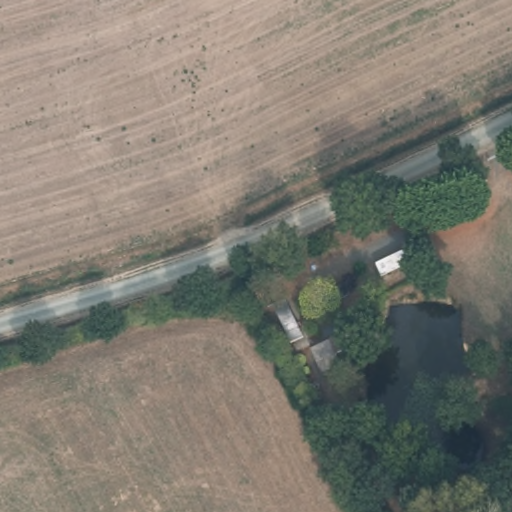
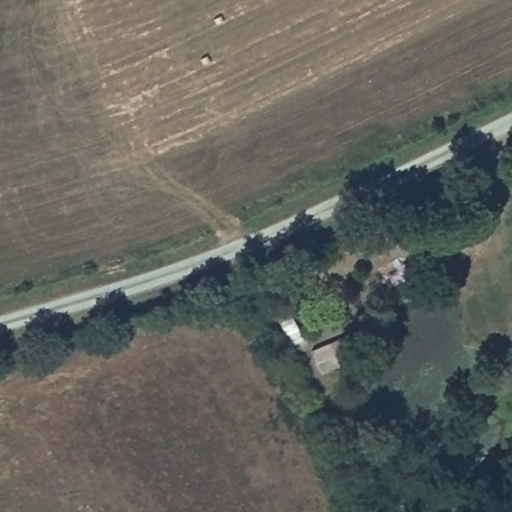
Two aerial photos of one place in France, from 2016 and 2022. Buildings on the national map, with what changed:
unchanged [(273,308),(290,302),(306,335),(289,345),(273,308)]

